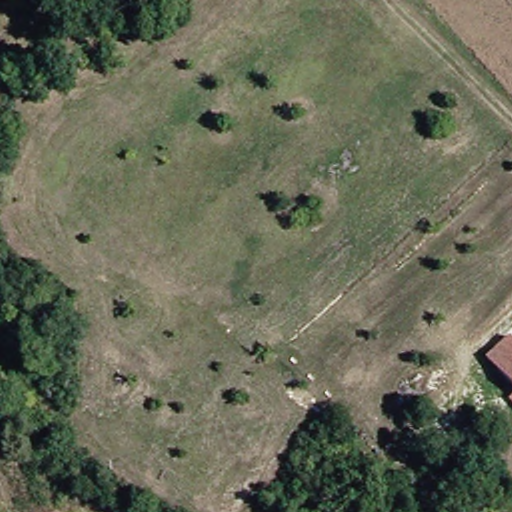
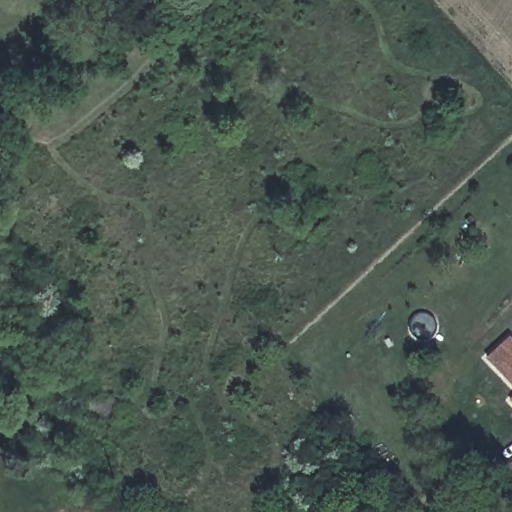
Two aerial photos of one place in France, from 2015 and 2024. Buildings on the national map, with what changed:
unchanged [(510,391),(478,356),(501,333),(512,344),(512,414),(500,401),(510,391)]

